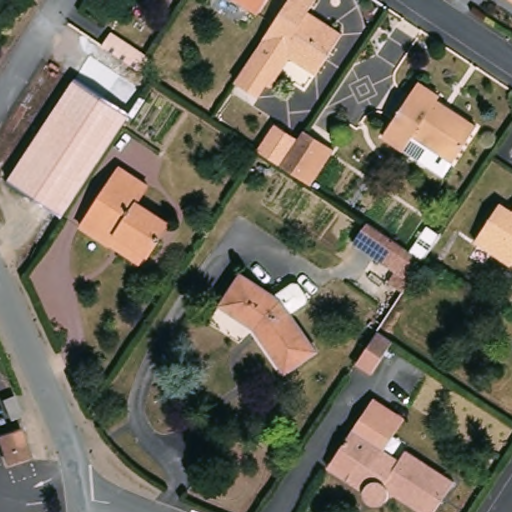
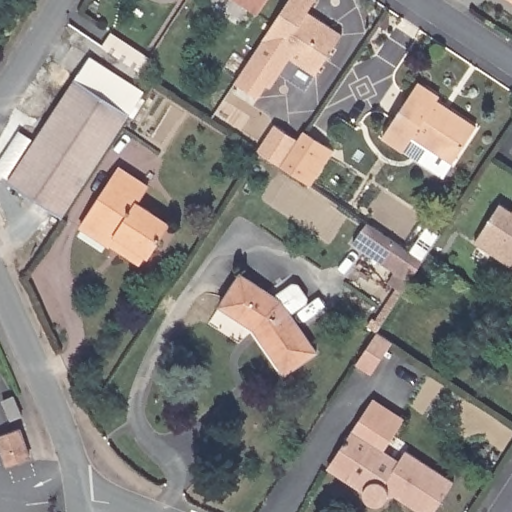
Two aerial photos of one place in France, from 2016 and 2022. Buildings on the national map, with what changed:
unchanged [(341,35),(314,76),(289,60),(269,90),(265,86),(257,98),(233,82),(287,0),(316,0),(307,12),(341,35)]
unchanged [(238,0),(275,0),(263,16),(238,0)]
unchanged [(512,2),(508,0),(512,0),(512,2)]
unchanged [(140,73),(101,47),(110,33),(149,60),(140,73)]
unchanged [(410,150),(387,135),(422,80),(444,95),(441,101),(452,108),(479,125),(455,162),(433,148),(417,139),(410,150)]
unchanged [(63,216),(8,182),(75,82),(129,116),(63,216)]
unchanged [(312,185),(305,180),(282,165),(305,130),(328,145),(334,150),(312,185)]
unchanged [(281,139),(291,145),(282,158),(272,151),(281,139)]
unchanged [(112,248),(83,230),(121,168),(148,186),(137,206),(168,225),(149,257),(142,268),(112,248)]
unchanged [(503,204),(510,209),(512,206),(512,261),(478,241),(503,204)]
unchanged [(394,281),(408,261),(414,251),(428,260),(422,270),(408,291),(394,281)]
unchanged [(258,335),(222,308),(243,272),(277,295),(290,277),(294,276),(307,285),(309,290),(293,312),(319,348),(284,372),(258,335)]
unchanged [(382,330),(398,340),(378,371),(361,361),(382,330)]
unchanged [(357,423),(367,406),(398,427),(378,457),(395,467),(400,458),(446,487),(430,512),(405,512),(387,500),(375,510),(372,511),(368,511),(365,511),(362,510),(361,507),(359,502),(339,490),(320,477),(325,470),(357,423)]
unchanged [(2,408),(15,438),(0,444),(0,410),(2,408)]

